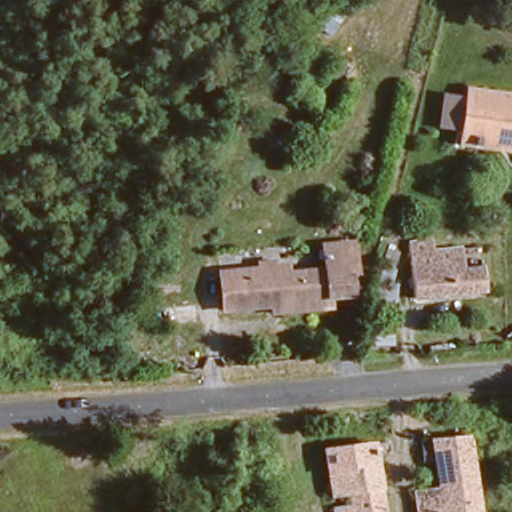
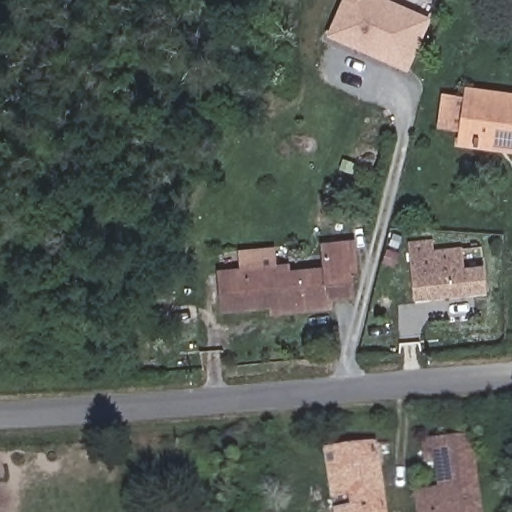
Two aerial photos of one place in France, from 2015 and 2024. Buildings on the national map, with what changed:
new [(342,0),(391,0),(431,18),(406,70),(326,36),(342,0)]
unchanged [(467,85),(512,92),(512,147),(500,145),(501,135),(481,131),(479,142),(458,139),(467,85)]
unchanged [(350,275),(343,276),(345,296),(323,298),(320,273),(319,273),(317,246),(347,244),(350,275)]
unchanged [(410,292),(409,265),(437,262),(438,270),(462,268),(461,260),(478,258),(480,287),(410,292)]
unchanged [(264,305),(222,308),(219,272),(271,267),(286,266),(287,276),(319,273),(320,273),(323,298),(324,308),(279,312),(265,314),(264,305)]
unchanged [(470,422),(483,512),(429,512),(424,476),(444,473),(440,448),(428,450),(426,435),(425,429),(470,422)]
unchanged [(379,443),(369,445),(378,512),(335,512),(326,442),(378,435),(379,443)]
unchanged [(192,511),(192,480),(221,480),(221,512),(192,511)]

